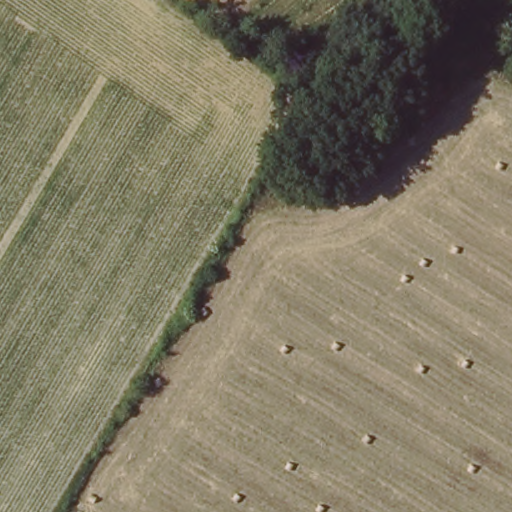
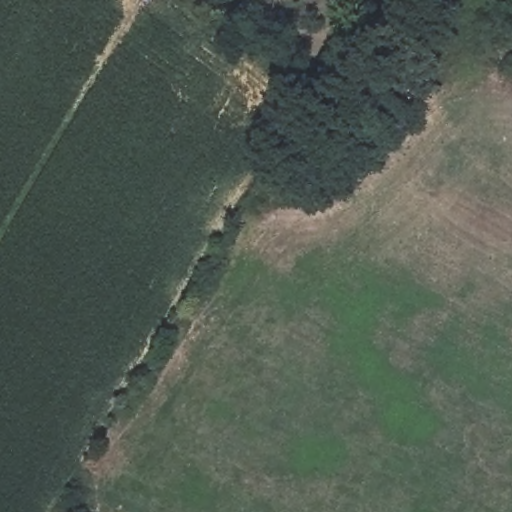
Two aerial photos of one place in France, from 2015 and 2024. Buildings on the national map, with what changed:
[]

